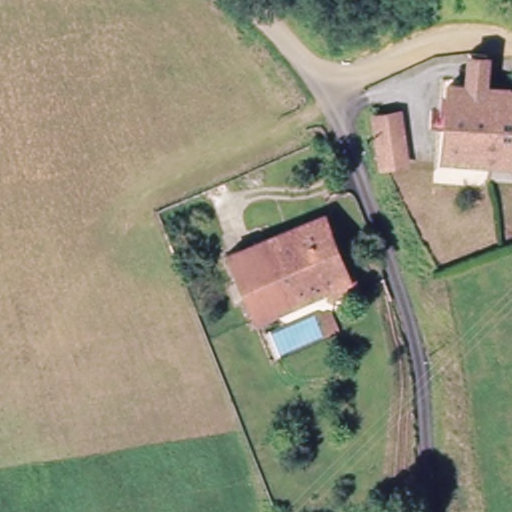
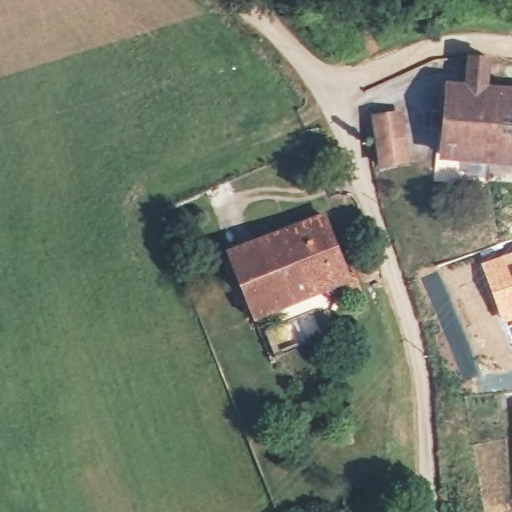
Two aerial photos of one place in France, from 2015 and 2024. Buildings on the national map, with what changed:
unchanged [(447,83),(467,85),(470,59),(486,60),(483,87),(512,90),(512,163),(440,154),(447,83)]
unchanged [(402,110),(409,165),(377,169),(371,116),(402,110)]
unchanged [(334,293),(251,319),(232,247),(329,216),(355,287),(363,285),(367,297),(339,305),(334,293)]
new [(479,263),(512,251),(512,322),(504,325),(479,263)]

